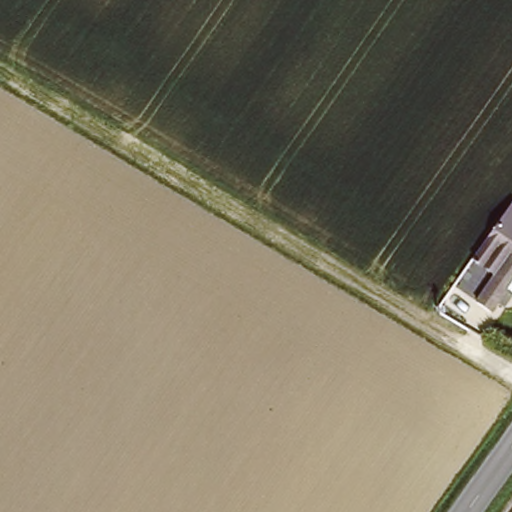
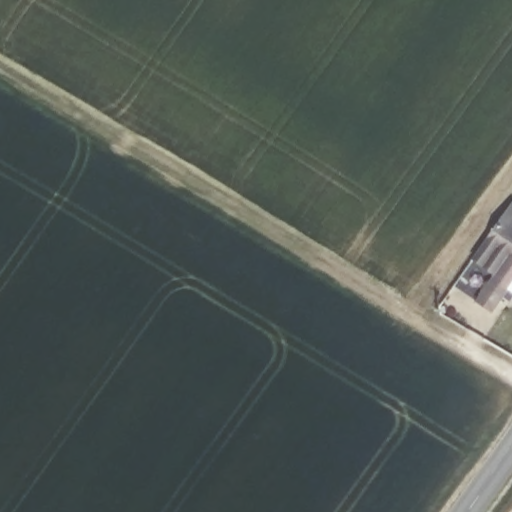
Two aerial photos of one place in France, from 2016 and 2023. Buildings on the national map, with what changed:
unchanged [(485,240),(512,204),(512,282),(505,291),(492,282),(510,257),(485,240)]

